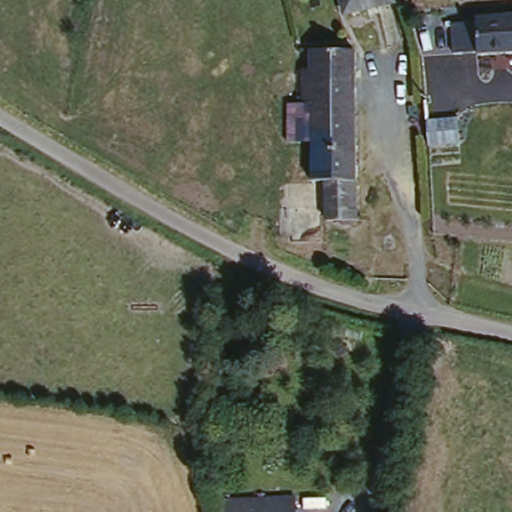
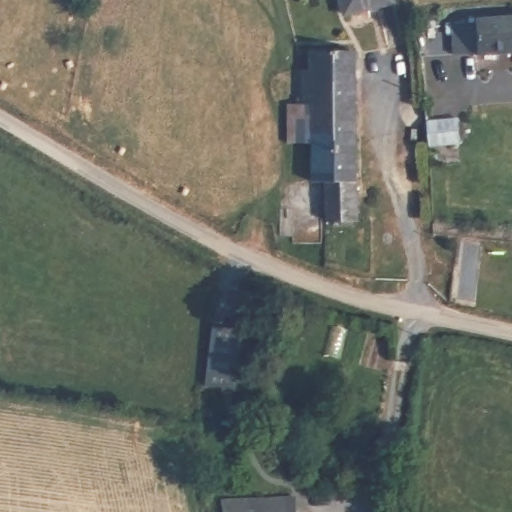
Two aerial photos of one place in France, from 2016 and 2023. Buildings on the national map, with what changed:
unchanged [(341,12),(339,0),(398,0),(398,2),(341,12)]
unchanged [(479,14),(512,12),(512,57),(483,59),(479,14)]
unchanged [(328,184),(319,183),(318,107),(309,107),(307,69),(317,67),(316,47),(361,45),(360,221),(327,221),(328,184)]
unchanged [(467,140),(437,140),(438,99),(467,98),(467,140)]
unchanged [(291,147),(292,99),(308,99),(309,107),(318,107),(319,147),(291,147)]
unchanged [(297,500),(298,512),(227,512),(224,501),(297,500)]

